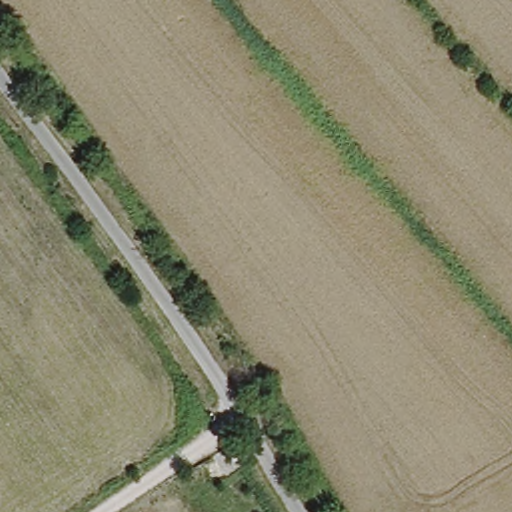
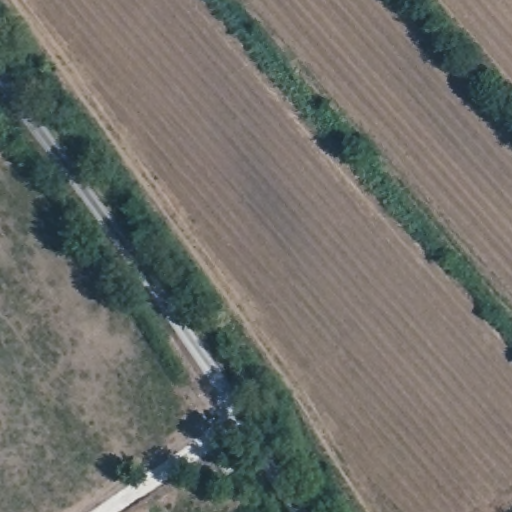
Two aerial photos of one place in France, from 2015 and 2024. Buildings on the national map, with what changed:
unchanged [(216,457),(232,445),(243,460),(227,471),(216,457)]

